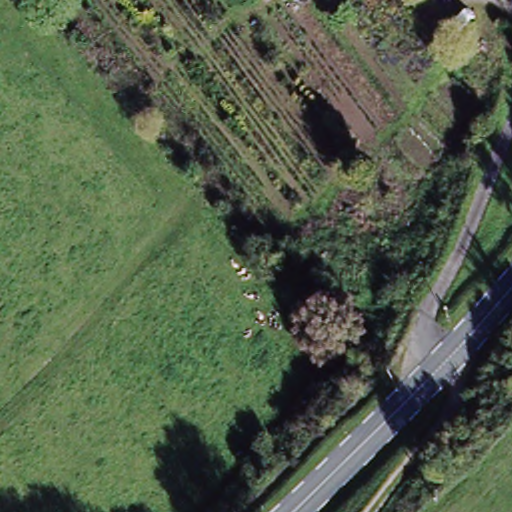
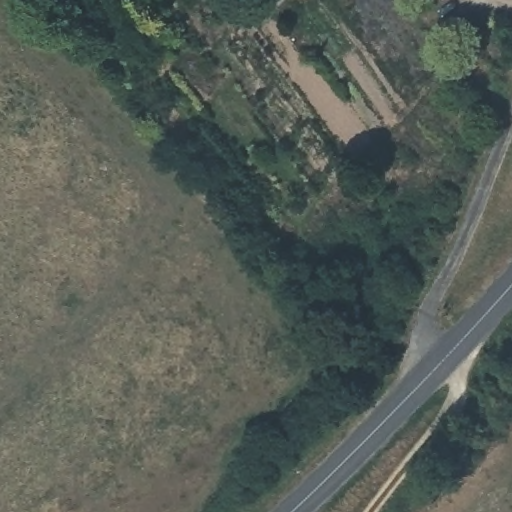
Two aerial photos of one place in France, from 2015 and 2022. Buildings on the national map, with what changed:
[]

